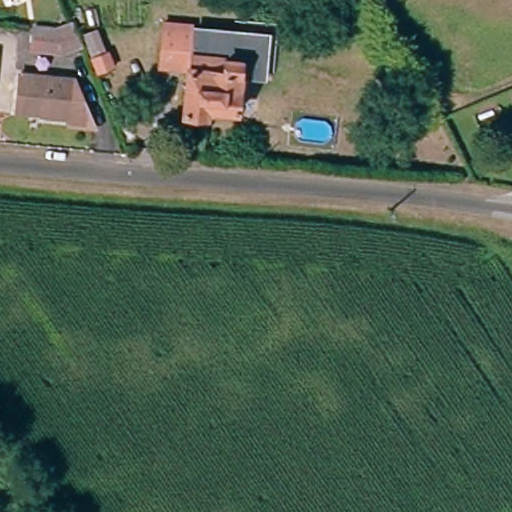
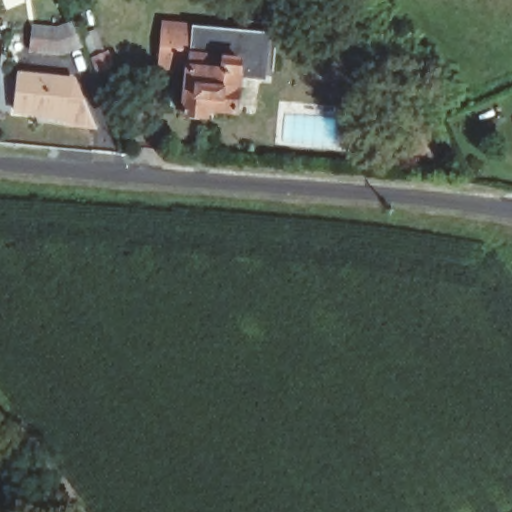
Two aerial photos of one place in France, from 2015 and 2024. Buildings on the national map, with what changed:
unchanged [(264,77),(249,76),(254,36),(239,35),(236,35),(237,25),(238,20),(270,23),(264,77)]
unchanged [(29,28),(51,30),(69,23),(78,45),(58,54),(27,50),(29,28)]
unchanged [(254,36),(249,76),(240,75),(235,75),(231,113),(202,110),(201,117),(177,115),(182,69),(156,66),(161,26),(236,35),(239,35),(254,36)]
unchanged [(71,81),(75,82),(94,128),(68,125),(69,115),(42,111),(41,115),(16,112),(19,75),(72,79),(71,81)]

